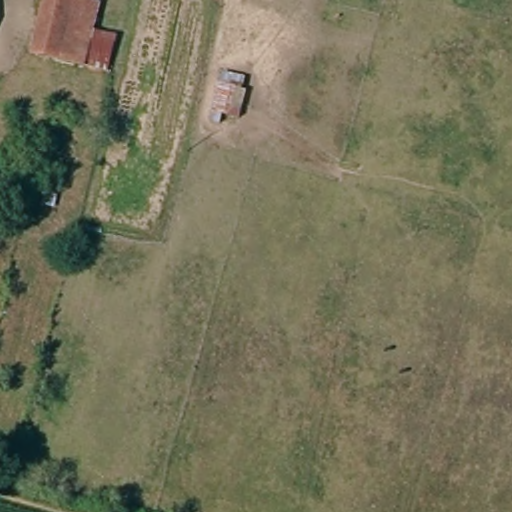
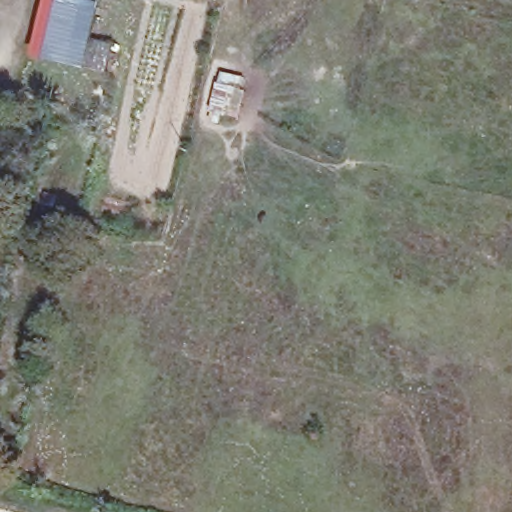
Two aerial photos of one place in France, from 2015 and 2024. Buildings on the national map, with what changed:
unchanged [(62,59),(59,68),(39,62),(35,61),(50,0),(78,0),(62,59)]
unchanged [(97,30),(122,36),(112,72),(62,59),(78,0),(80,0),(103,6),(97,30)]

